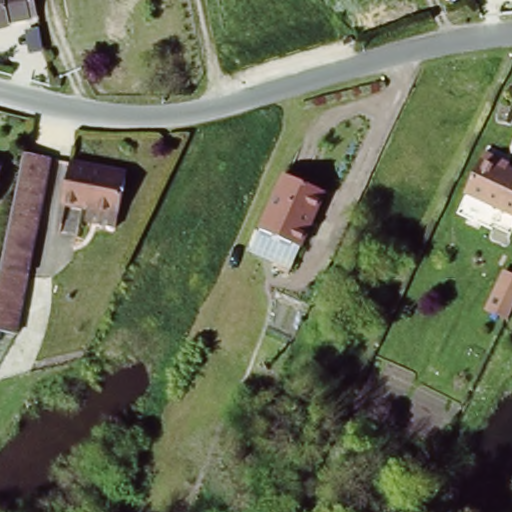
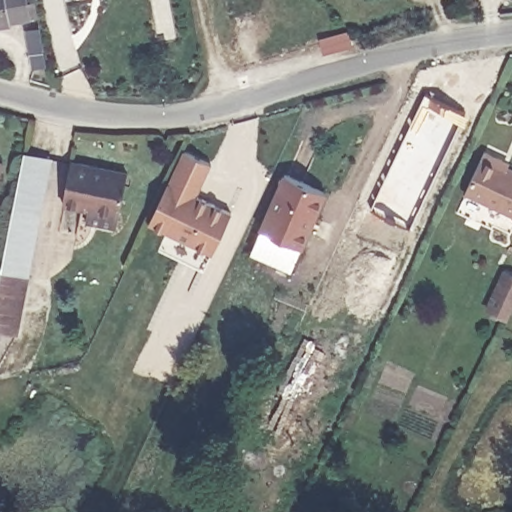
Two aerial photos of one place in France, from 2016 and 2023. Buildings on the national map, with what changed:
unchanged [(6,24),(0,24),(0,0),(28,0),(31,17),(6,19),(6,24)]
new [(168,232),(148,222),(183,151),(211,164),(196,195),(231,211),(213,252),(204,269),(159,250),(168,232)]
unchanged [(55,163),(45,213),(19,208),(29,158),(55,163)]
unchanged [(470,200),(489,161),(503,167),(502,170),(512,175),(512,214),(509,219),(470,200)]
unchanged [(0,180),(0,162),(4,163),(0,180)]
unchanged [(86,215),(88,208),(63,204),(71,162),(127,172),(119,214),(118,221),(86,215)]
unchanged [(331,200),(290,282),(246,260),(286,181),(331,200)]
unchanged [(31,281),(20,340),(0,336),(0,304),(19,208),(45,213),(40,236),(31,281)]
unchanged [(512,214),(512,220),(509,219),(512,214)]

